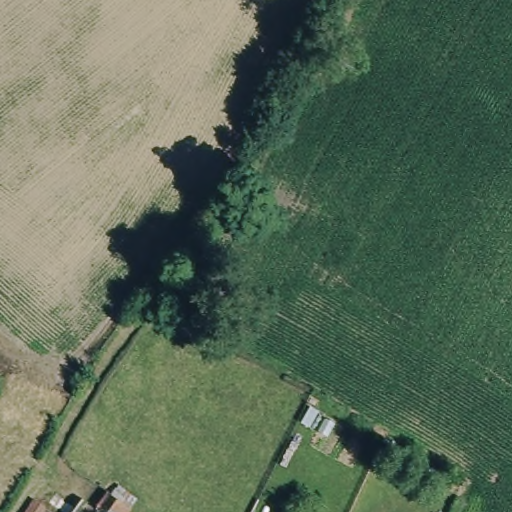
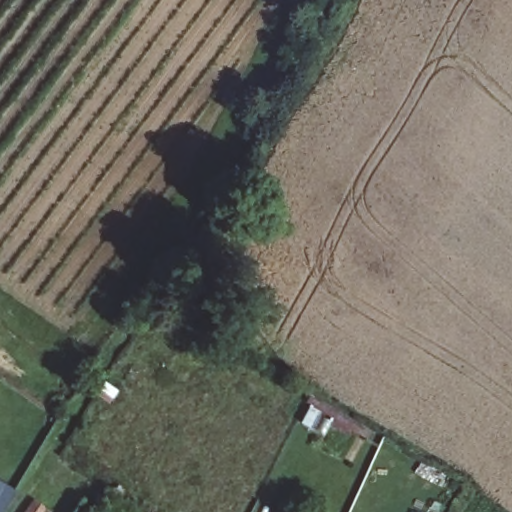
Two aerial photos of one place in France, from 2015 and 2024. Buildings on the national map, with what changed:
unchanged [(124,512),(64,512),(77,492),(95,502),(112,478),(137,496),(124,512)]
unchanged [(5,489),(0,498),(0,486),(5,489)]
unchanged [(32,512),(15,512),(26,494),(39,502),(32,512)]

